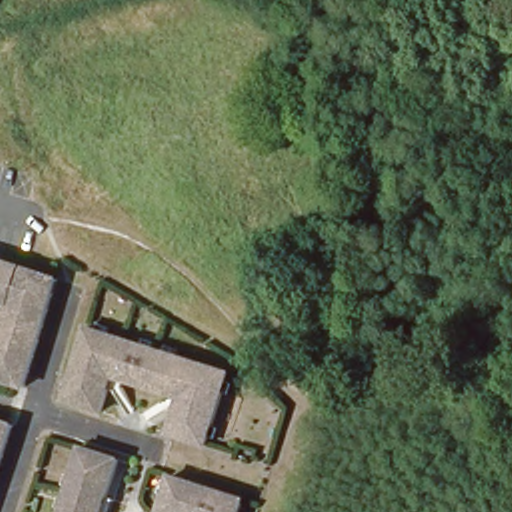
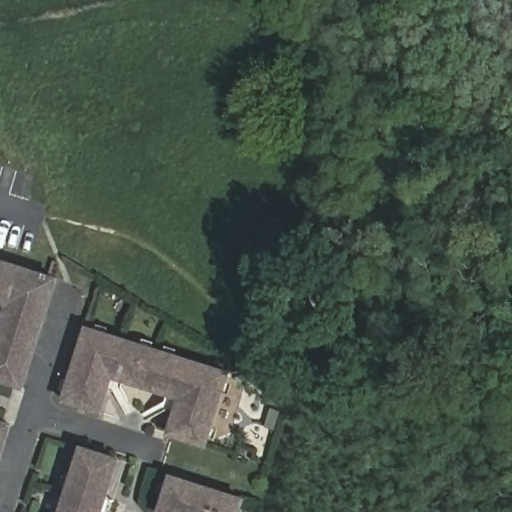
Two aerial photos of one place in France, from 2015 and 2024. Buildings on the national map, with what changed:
unchanged [(34,368),(26,390),(0,382),(0,347),(14,306),(0,302),(0,263),(61,282),(34,368)]
unchanged [(89,330),(231,376),(208,447),(172,435),(183,400),(114,378),(103,413),(66,401),(89,330)]
unchanged [(0,466),(0,424),(11,427),(0,466)]
unchanged [(106,512),(64,512),(84,451),(122,463),(106,512)]
unchanged [(246,503),(243,512),(162,512),(173,479),(246,503)]

